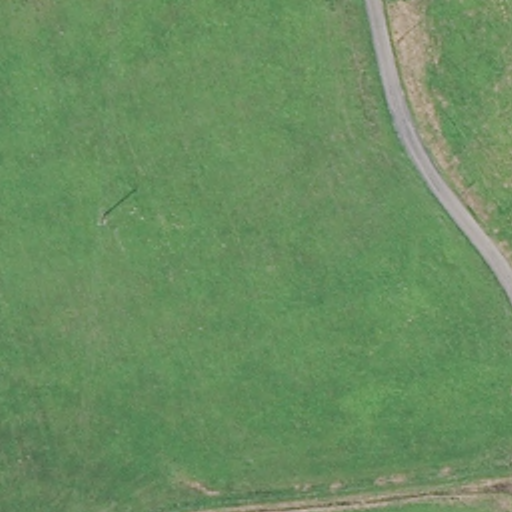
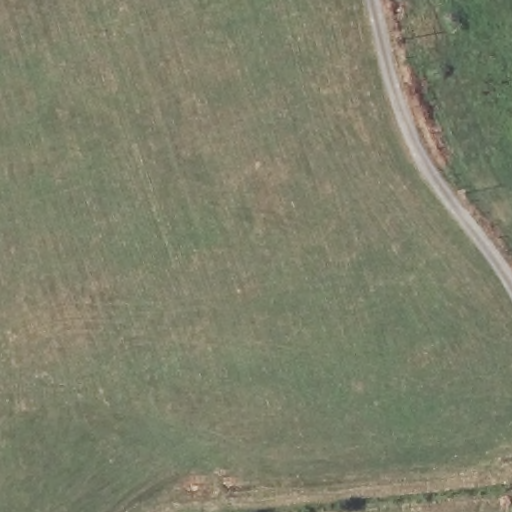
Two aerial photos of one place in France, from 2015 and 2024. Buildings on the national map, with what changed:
[]

